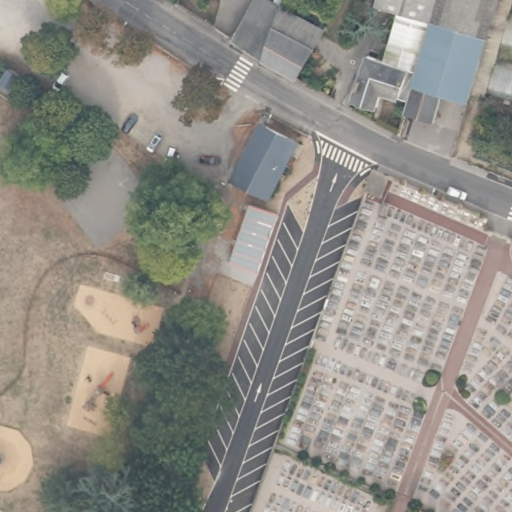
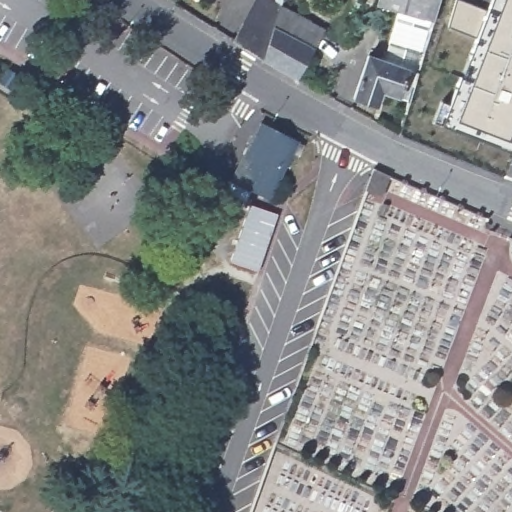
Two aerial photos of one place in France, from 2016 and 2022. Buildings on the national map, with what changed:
unchanged [(315,57),(297,85),(263,65),(232,46),(246,23),(260,0),(261,0),(280,13),(324,38),(315,57)]
unchanged [(399,10),(377,4),(378,0),(437,0),(431,20),(399,10)]
demolished [(431,20),(437,0),(497,0),(471,90),(472,90),(468,101),(443,92),(435,121),(404,112),(408,99),(431,20)]
new [(475,37),(449,27),(457,0),(460,0),(486,11),(490,0),(512,0),(512,153),(441,125),(475,37)]
demolished [(512,102),(487,96),(512,9),(512,102)]
unchanged [(408,99),(382,91),(378,105),(354,97),(369,54),(385,59),(399,10),(431,20),(408,99)]
unchanged [(284,161),(263,203),(229,185),(255,130),(298,150),(291,164),(284,161)]
new [(280,214),(259,272),(230,262),(250,204),(280,214)]

